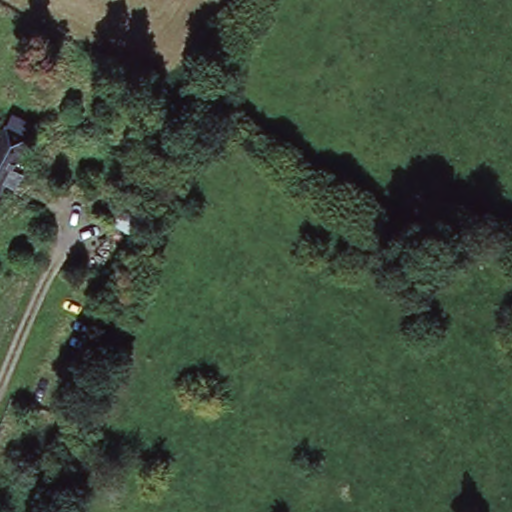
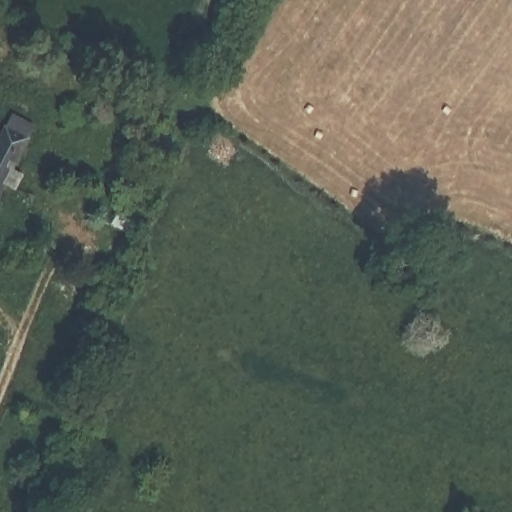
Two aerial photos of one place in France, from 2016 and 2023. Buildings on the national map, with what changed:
unchanged [(0,196),(0,140),(15,111),(36,121),(0,196)]

